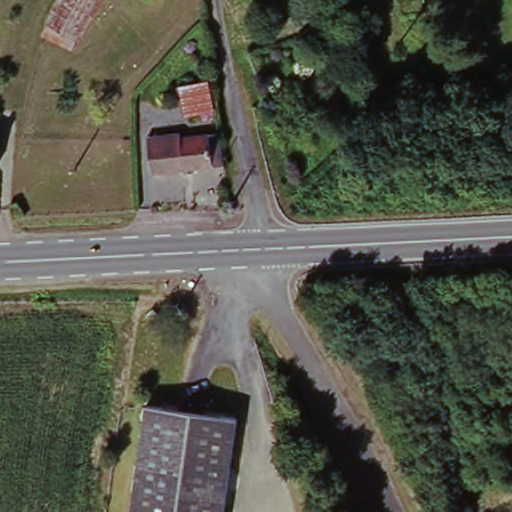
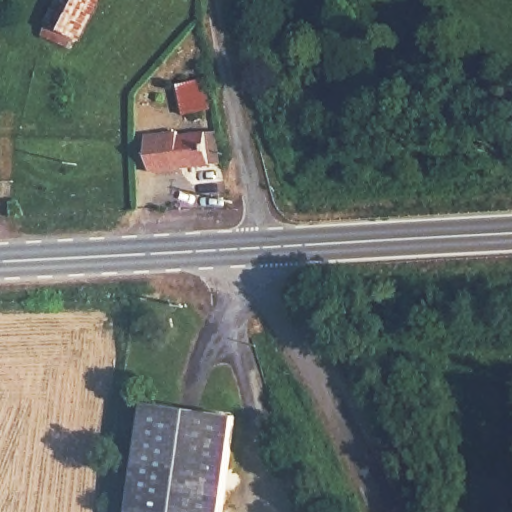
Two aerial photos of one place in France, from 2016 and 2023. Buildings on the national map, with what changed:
unchanged [(45,31),(51,20),(48,20),(58,0),(102,0),(83,37),(76,49),(45,31)]
unchanged [(212,80),(215,112),(188,116),(182,85),(212,80)]
unchanged [(0,169),(0,137),(0,136),(3,169),(0,169)]
unchanged [(175,137),(175,140),(214,136),(219,169),(150,177),(145,141),(175,137)]
unchanged [(223,512),(131,512),(146,403),(234,415),(223,512)]

